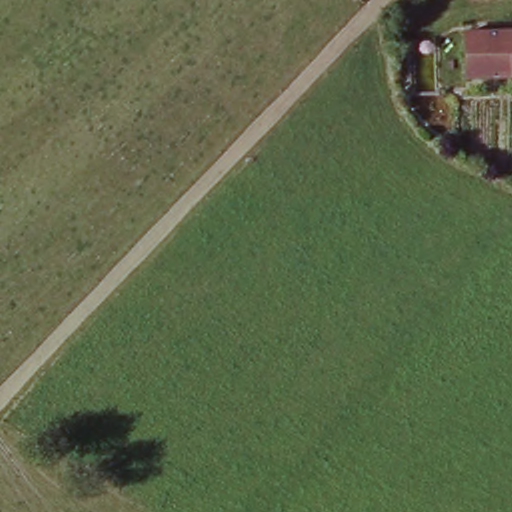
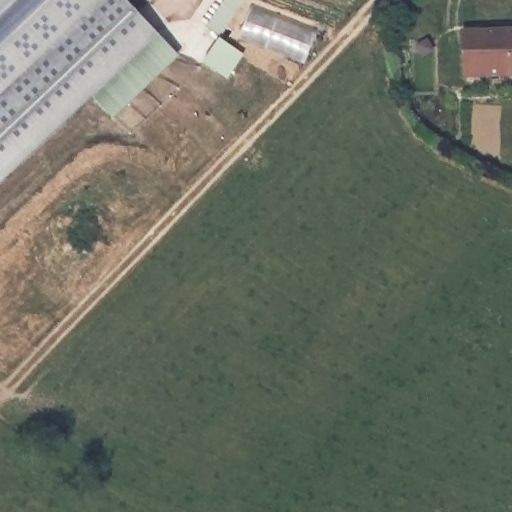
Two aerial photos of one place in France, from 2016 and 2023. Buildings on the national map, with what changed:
new [(158,31),(0,183),(0,0),(129,0),(158,31)]
unchanged [(480,39),(512,39),(512,85),(482,85),(462,85),(459,40),(480,39)]

